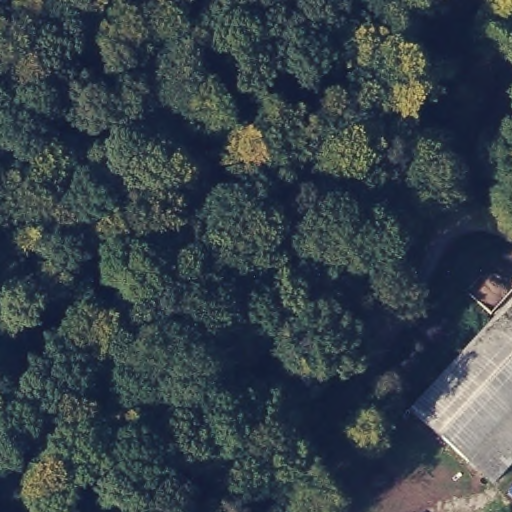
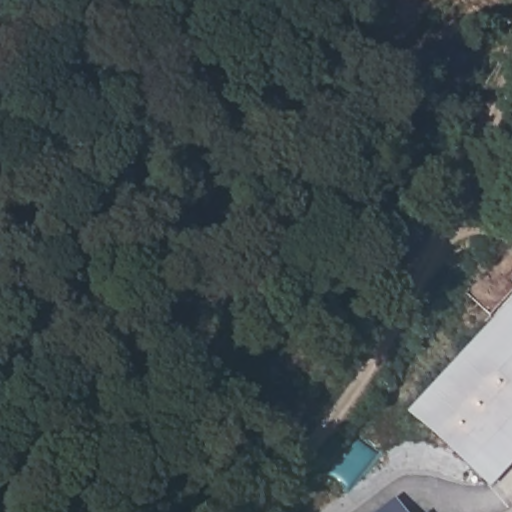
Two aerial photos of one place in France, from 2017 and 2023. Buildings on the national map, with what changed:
unchanged [(470,461),(412,412),(512,294),(512,412),(470,461)]
unchanged [(512,412),(512,465),(494,484),(470,461),(512,412)]

